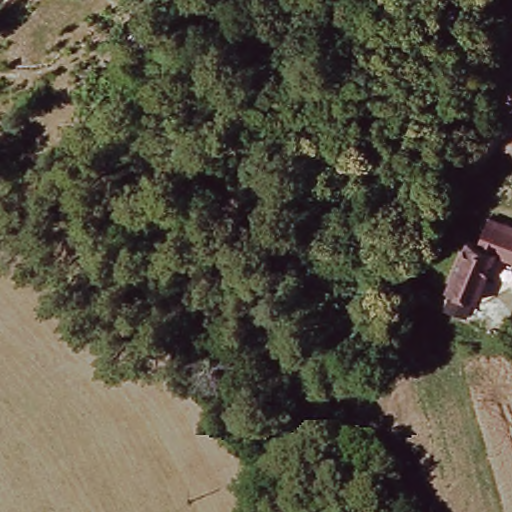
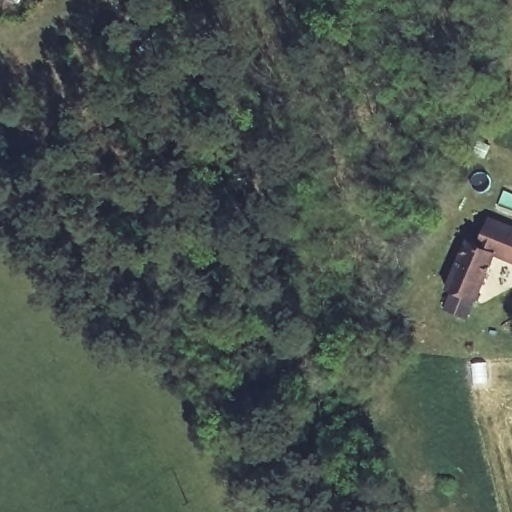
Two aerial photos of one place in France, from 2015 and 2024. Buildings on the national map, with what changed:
unchanged [(155,22),(176,45),(153,65),(132,43),(155,22)]
unchanged [(480,301),(453,288),(475,240),(486,245),(501,221),(512,226),(512,258),(503,254),(480,301)]

